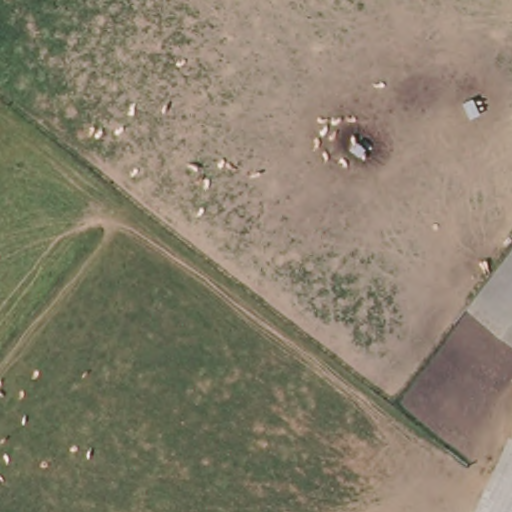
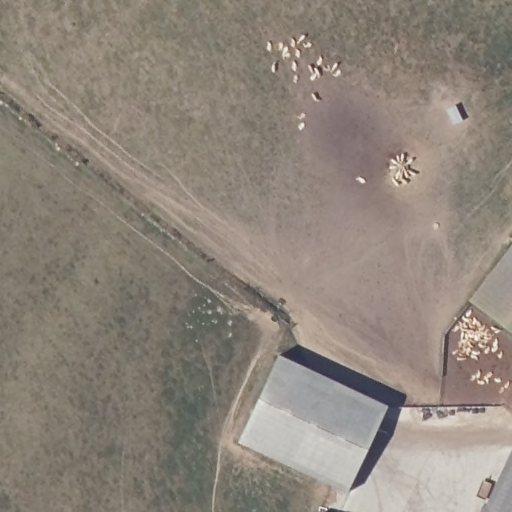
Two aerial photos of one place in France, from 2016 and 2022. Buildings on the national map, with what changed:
unchanged [(471,310),(512,254),(512,341),(471,310)]
new [(279,355),(388,406),(348,492),(239,441),(279,355)]
unchanged [(506,448),(512,451),(512,512),(476,512),(506,448)]

